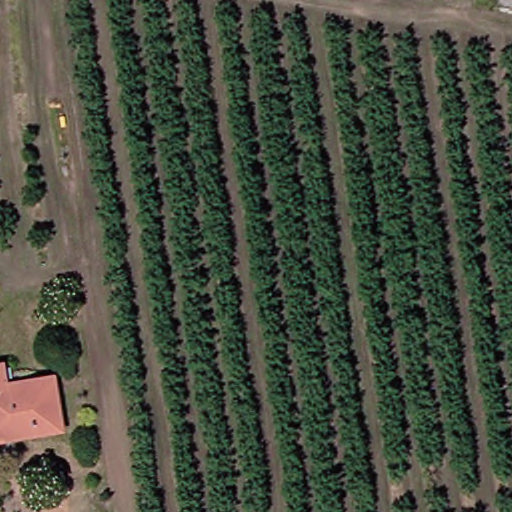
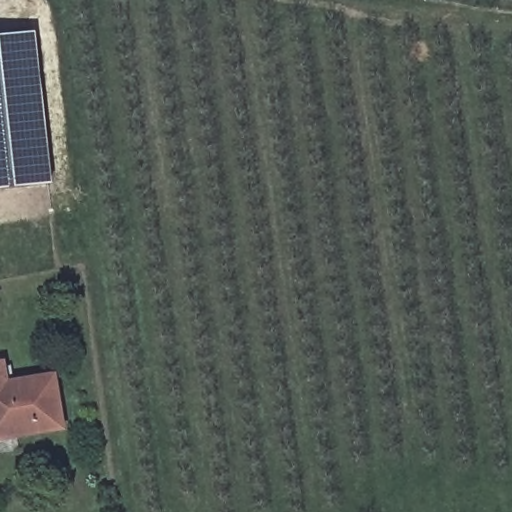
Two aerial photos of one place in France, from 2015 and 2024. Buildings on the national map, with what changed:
new [(34,33),(50,184),(0,190),(0,37),(34,33)]
unchanged [(2,367),(11,391),(54,381),(67,428),(7,440),(3,427),(0,428),(0,367),(2,367)]

